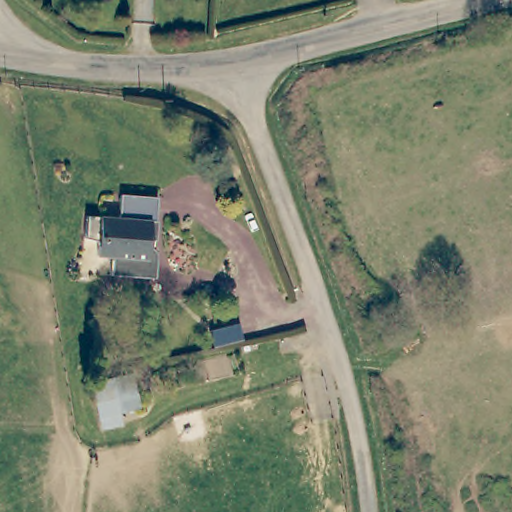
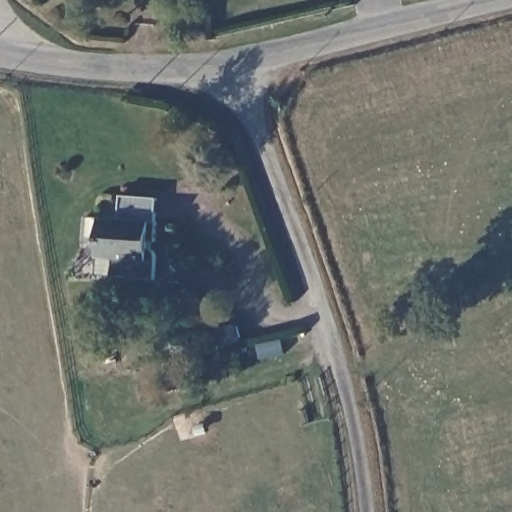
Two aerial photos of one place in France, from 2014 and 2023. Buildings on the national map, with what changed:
unchanged [(108,276),(110,257),(93,255),(94,245),(79,244),(82,209),(117,211),(118,192),(160,197),(151,278),(108,276)]

